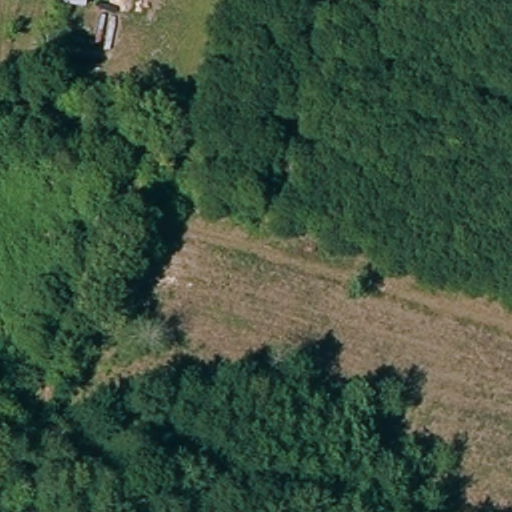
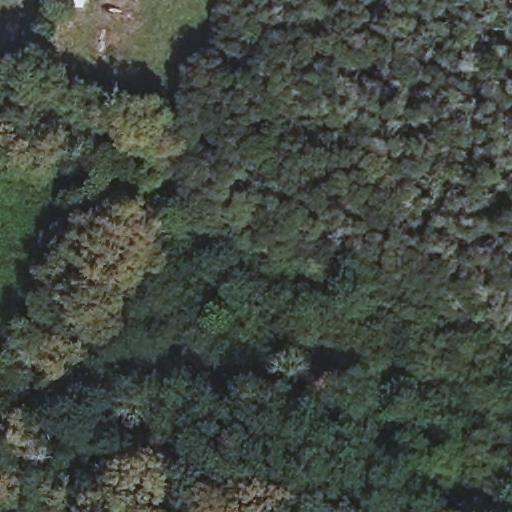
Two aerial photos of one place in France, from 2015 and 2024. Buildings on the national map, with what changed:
unchanged [(62,9),(63,0),(90,0),(88,12),(62,9)]

